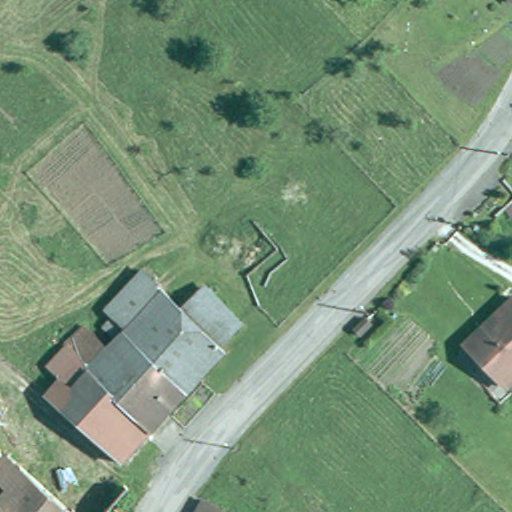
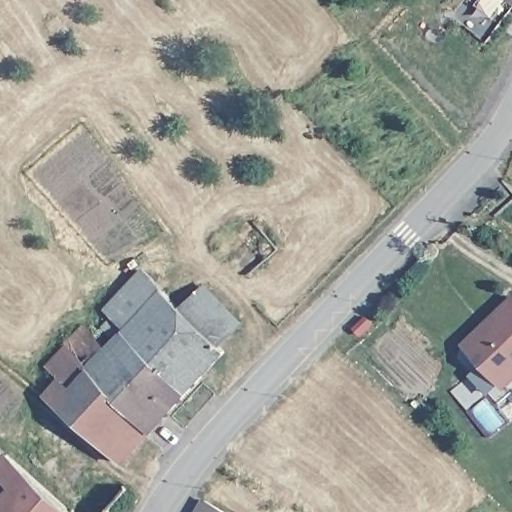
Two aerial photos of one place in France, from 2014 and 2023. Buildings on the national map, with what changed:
unchanged [(145,269),(168,291),(130,331),(107,308),(145,269)]
unchanged [(209,288),(244,323),(223,345),(188,310),(209,288)]
unchanged [(229,351),(191,392),(130,331),(168,291),(188,310),(223,345),(229,351)]
unchanged [(503,321),(496,315),(512,299),(512,379),(505,386),(472,351),(503,321)]
unchanged [(354,328),(364,317),(371,325),(361,335),(354,328)]
unchanged [(90,326),(113,350),(89,366),(64,385),(50,365),(69,346),(90,326)]
unchanged [(125,463),(51,395),(64,385),(89,366),(113,350),(130,331),(191,392),(156,431),(125,463)]
unchanged [(6,449),(13,455),(77,512),(0,512),(0,456),(6,449)]
unchanged [(204,500),(225,512),(198,512),(204,500)]

